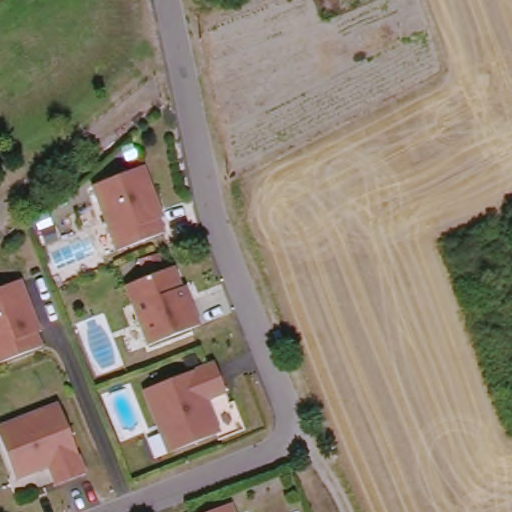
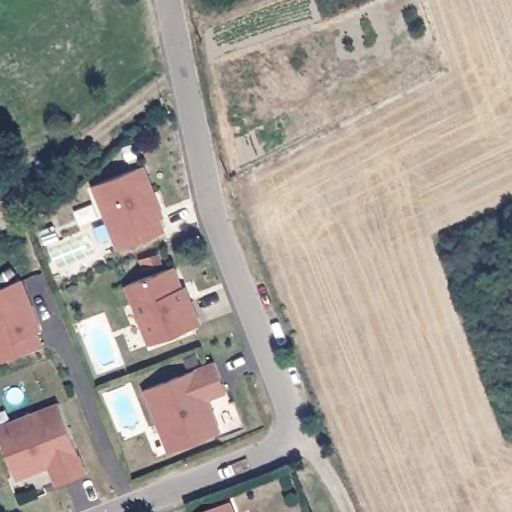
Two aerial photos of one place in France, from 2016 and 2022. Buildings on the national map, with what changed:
unchanged [(93,186),(144,165),(155,192),(150,194),(165,231),(119,250),(93,186)]
unchanged [(174,267),(188,302),(191,301),(201,325),(150,345),(126,286),(174,267)]
unchanged [(21,279),(32,306),(28,308),(43,345),(0,362),(0,288),(21,279)]
unchanged [(145,390),(215,362),(227,392),(208,399),(221,432),(177,450),(169,453),(158,424),(145,390)]
unchanged [(87,473),(57,485),(50,466),(17,479),(0,438),(0,426),(25,416),(59,403),(87,473)]
unchanged [(235,512),(210,512),(232,503),(235,512)]

